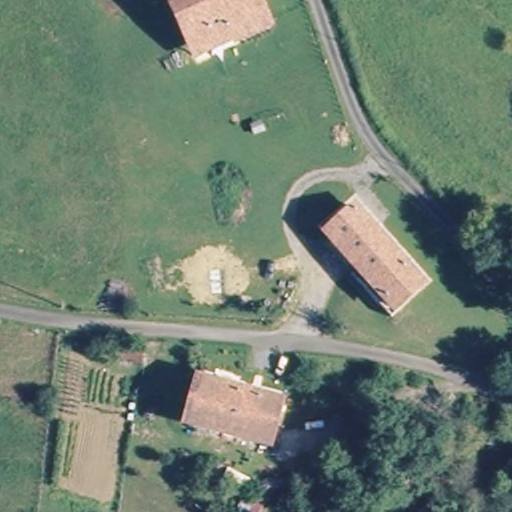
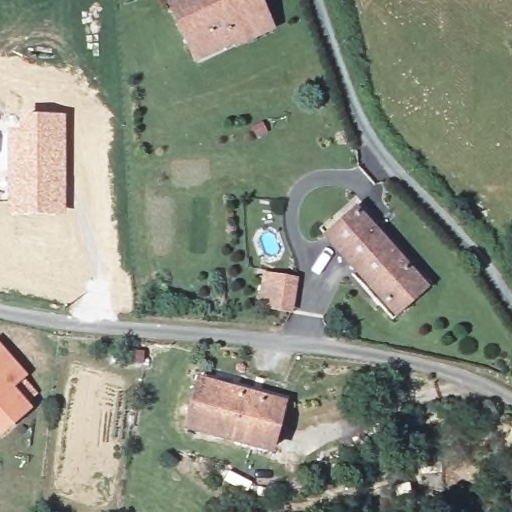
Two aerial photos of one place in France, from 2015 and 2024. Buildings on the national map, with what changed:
unchanged [(192,47),(174,5),(184,0),(259,0),(262,7),(270,26),(246,36),(236,41),(197,58),(192,47)]
new [(65,114),(64,215),(7,215),(6,115),(65,114)]
unchanged [(390,312),(385,307),(326,235),(355,210),(415,282),(419,287),(390,312)]
new [(257,308),(262,272),(298,277),(292,315),(257,308)]
new [(13,388),(32,408),(0,435),(0,346),(27,377),(13,388)]
unchanged [(193,432),(204,386),(282,404),(285,405),(275,451),(241,443),(193,432)]

